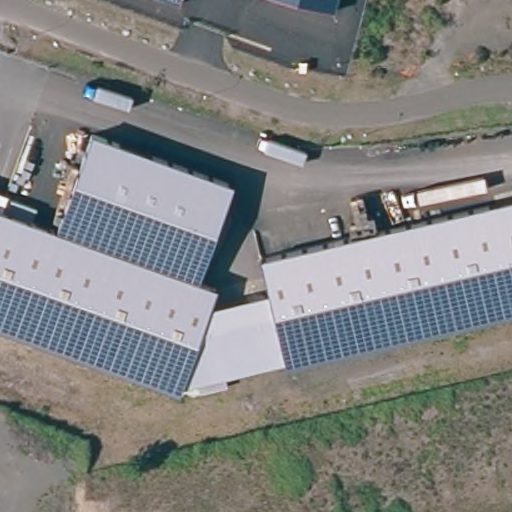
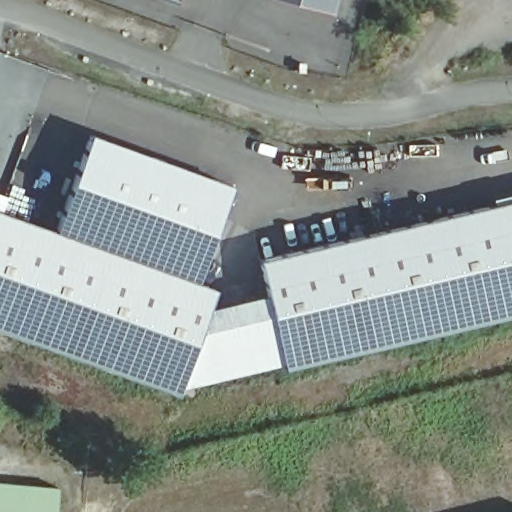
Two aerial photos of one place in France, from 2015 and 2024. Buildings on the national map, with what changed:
unchanged [(176,7),(158,0),(179,0),(176,7)]
unchanged [(333,13),(284,0),(337,0),(333,13)]
unchanged [(92,133),(234,184),(198,282),(56,232),(92,133)]
unchanged [(282,367),(281,365),(265,295),(257,262),(304,251),(512,202),(512,313),(303,362),(282,367)]
unchanged [(213,292),(207,309),(178,389),(176,395),(0,330),(0,215),(213,292)]
unchanged [(281,365),(178,389),(207,309),(265,295),(281,365)]
new [(59,487),(57,512),(0,512),(0,482),(59,487)]

